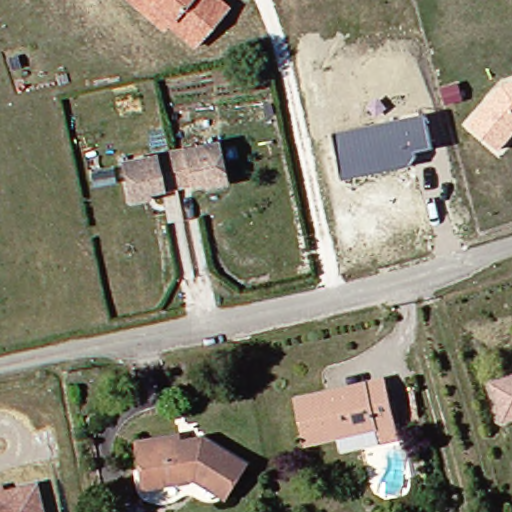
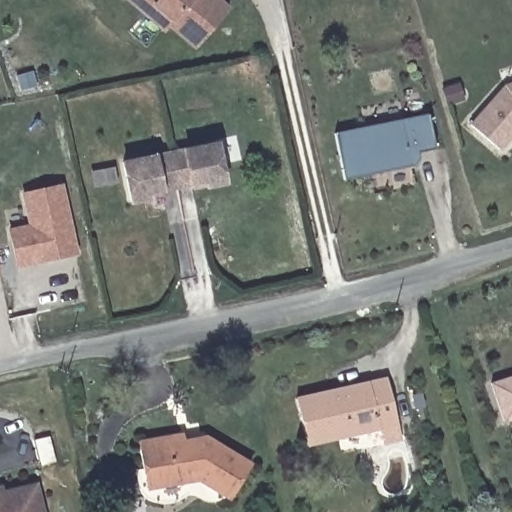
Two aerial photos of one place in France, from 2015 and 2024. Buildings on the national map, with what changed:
unchanged [(195,49),(167,27),(163,32),(125,0),(221,0),(229,6),(195,49)]
unchanged [(501,150),(468,125),(502,85),(512,82),(512,137),(501,150)]
unchanged [(433,147),(416,151),(417,158),(412,165),(342,179),(333,134),(425,116),(433,147)]
unchanged [(227,179),(209,182),(207,175),(150,187),(150,194),(131,199),(122,155),(217,136),(227,179)]
new [(18,265),(10,229),(31,225),(24,192),(61,183),(77,252),(18,265)]
unchanged [(506,419),(495,380),(512,375),(512,417),(506,419)]
unchanged [(382,443),(378,429),(305,445),(293,400),(329,392),(360,385),(385,380),(395,425),(397,439),(382,443)]
unchanged [(147,486),(140,441),(183,432),(185,439),(209,434),(252,465),(229,498),(213,488),(199,478),(194,489),(149,496),(147,486)]
unchanged [(2,491),(34,483),(41,512),(0,512),(0,485),(1,485),(2,491)]
unchanged [(121,506),(122,512),(94,512),(94,510),(121,506)]

